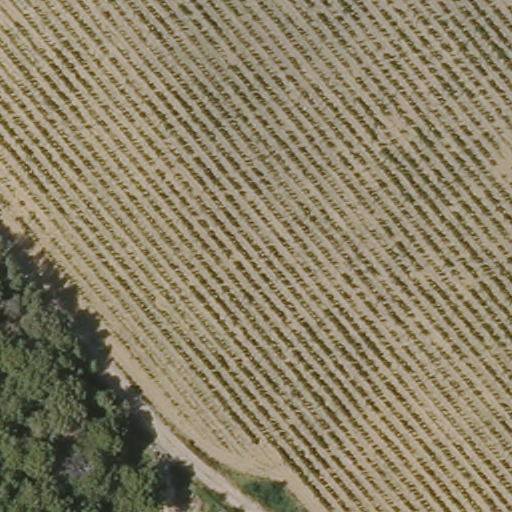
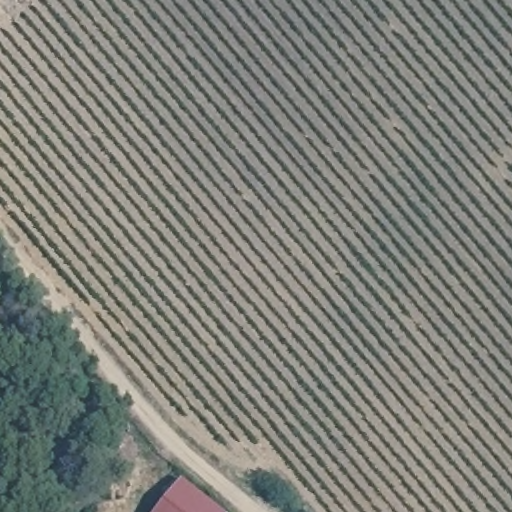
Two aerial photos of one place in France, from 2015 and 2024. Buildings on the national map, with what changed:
new [(224,512),(158,512),(183,482),(224,512)]

